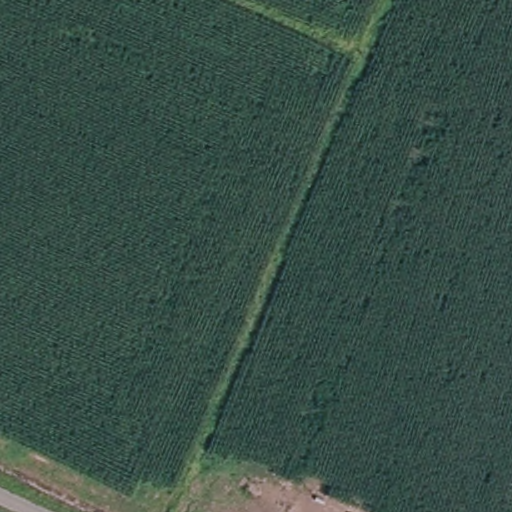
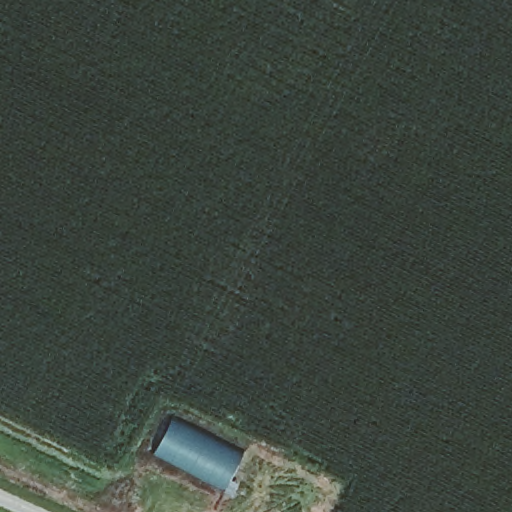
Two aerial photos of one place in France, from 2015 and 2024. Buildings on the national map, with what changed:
new [(203,463),(199,471),(155,448),(170,420),(195,433),(197,429),(241,452),(228,476),(203,463)]

